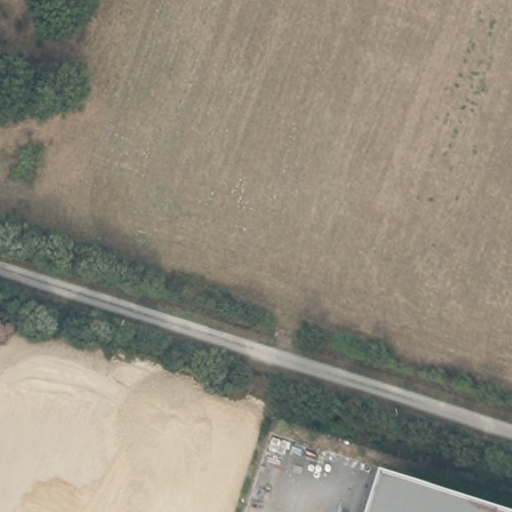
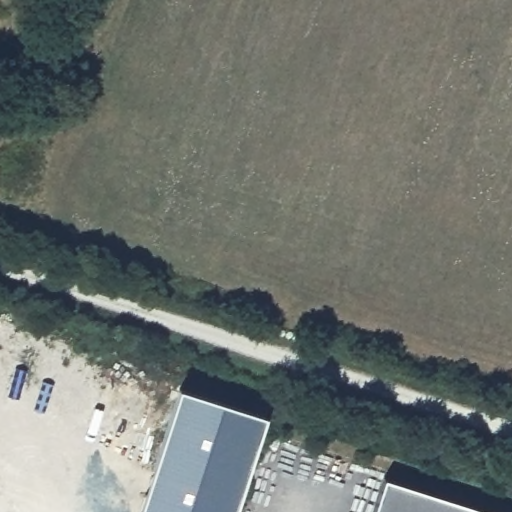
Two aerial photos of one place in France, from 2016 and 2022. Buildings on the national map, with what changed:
new [(178,386),(266,414),(235,512),(138,512),(178,386)]
unchanged [(381,476),(495,512),(370,512),(381,476)]

